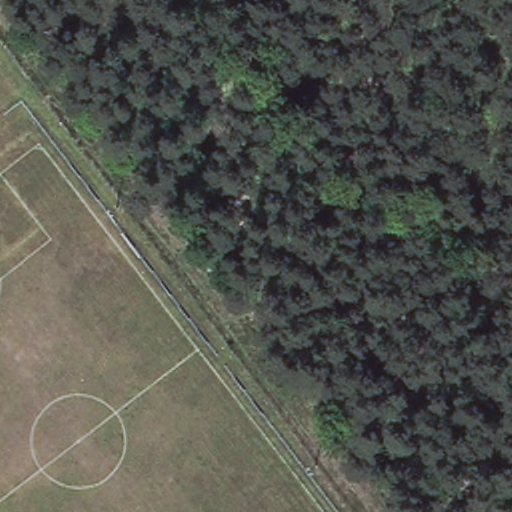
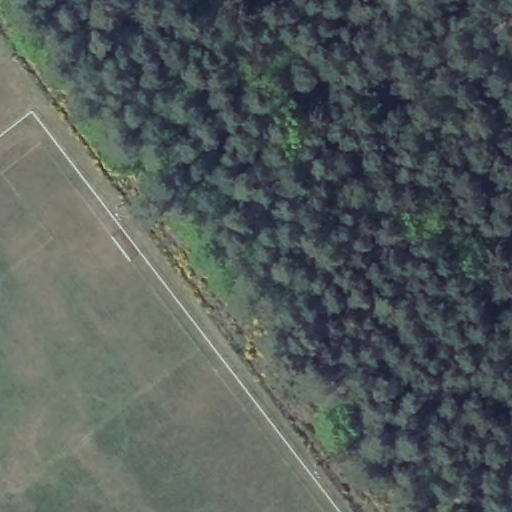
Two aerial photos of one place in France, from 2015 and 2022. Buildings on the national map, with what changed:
[]

